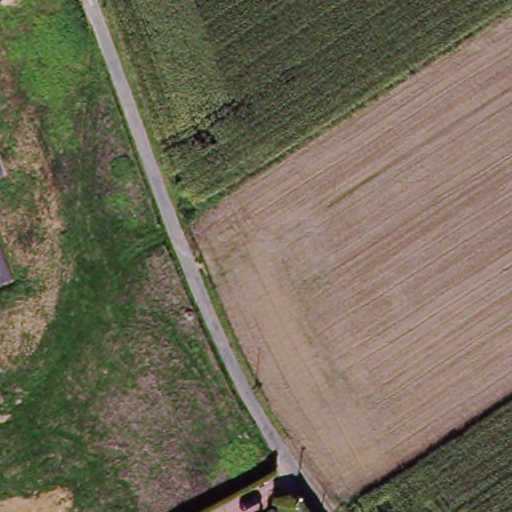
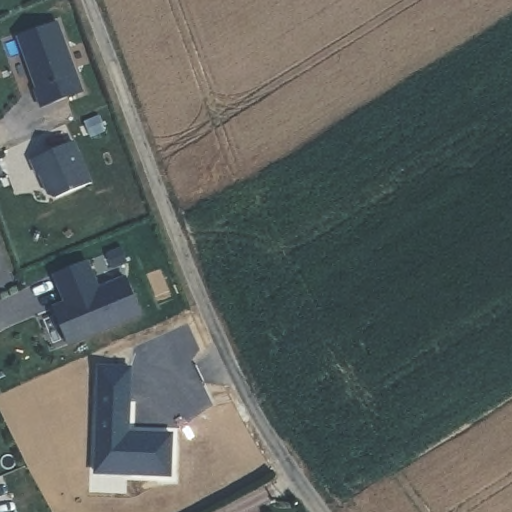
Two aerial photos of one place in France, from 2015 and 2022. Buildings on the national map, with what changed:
new [(85,94),(42,110),(34,91),(37,90),(17,35),(57,21),(85,94)]
new [(73,140),(91,181),(57,196),(50,193),(41,172),(38,173),(32,157),(73,140)]
new [(72,299),(69,292),(62,295),(53,274),(85,261),(97,288),(125,277),(140,312),(68,343),(52,307),(72,299)]
new [(99,366),(130,366),(129,431),(172,431),(171,472),(97,471),(99,366)]

